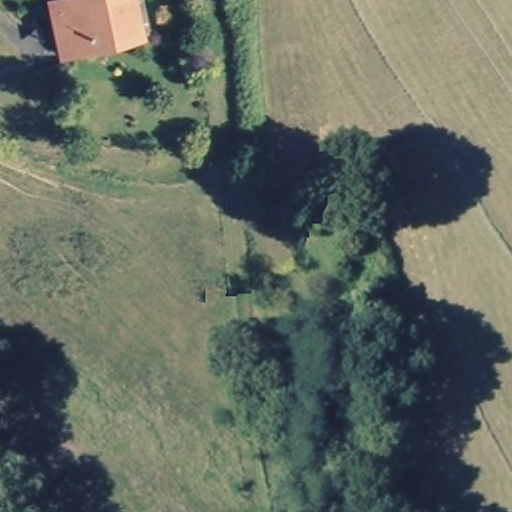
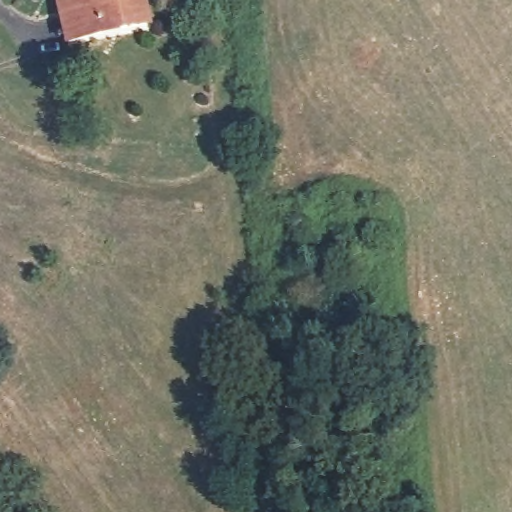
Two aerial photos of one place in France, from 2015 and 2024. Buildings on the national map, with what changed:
unchanged [(70,44),(60,0),(141,0),(146,24),(70,44)]

